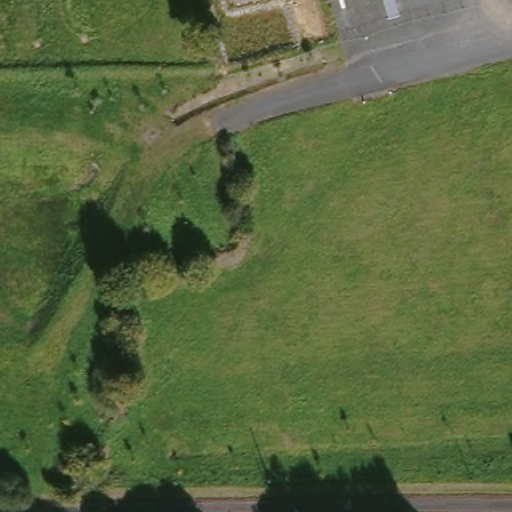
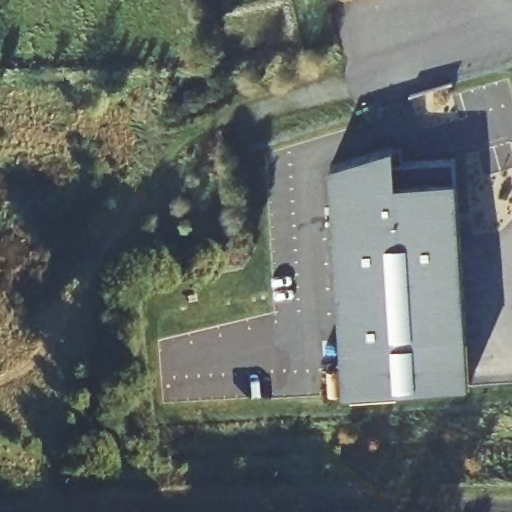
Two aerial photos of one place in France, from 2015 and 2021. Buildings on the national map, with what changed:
new [(329,168),(393,149),(395,167),(455,160),(456,182),(470,387),(344,394),(329,168)]

